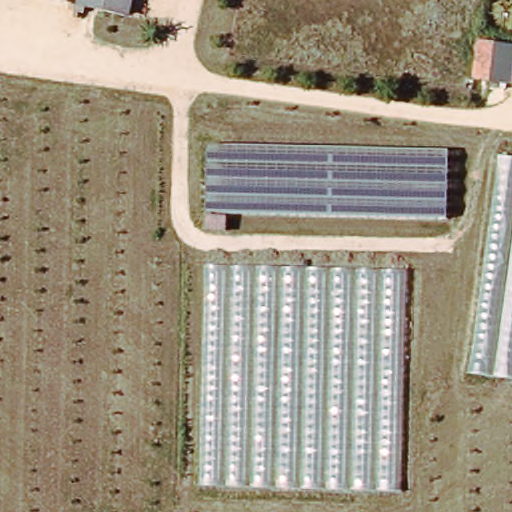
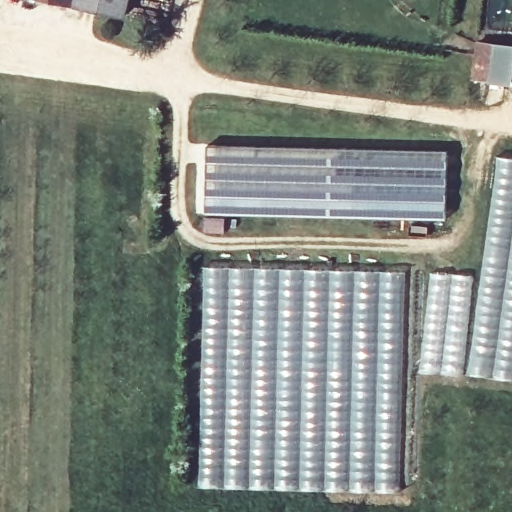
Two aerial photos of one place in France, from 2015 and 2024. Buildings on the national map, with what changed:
unchanged [(135,0),(132,17),(50,0),(135,0)]
unchanged [(512,84),(471,79),(477,40),(512,46),(512,84)]
unchanged [(205,232),(206,215),(207,145),(448,149),(448,220),(228,216),(228,232),(205,232)]
unchanged [(512,378),(468,372),(498,151),(512,153),(512,378)]
unchanged [(203,265),(407,272),(400,494),(200,487),(203,265)]
new [(427,271),(473,275),(463,345),(460,375),(417,373),(427,271)]

